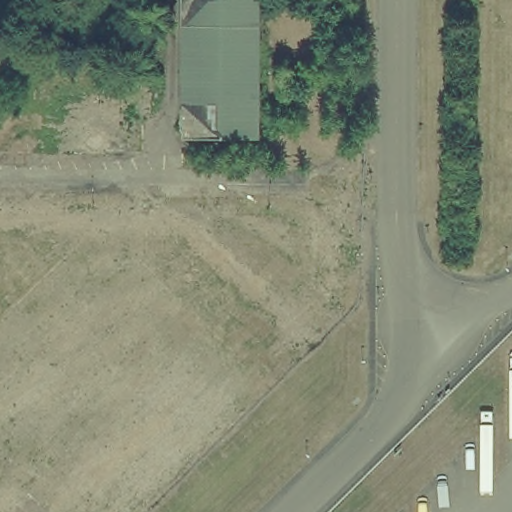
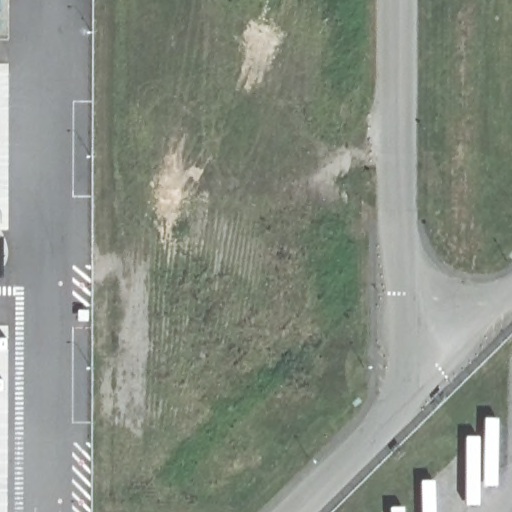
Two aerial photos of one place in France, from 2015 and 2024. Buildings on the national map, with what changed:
demolished [(272,146),(186,146),(184,0),(269,0),(272,146)]
new [(82,310),(88,310),(87,321),(81,321),(82,310)]

